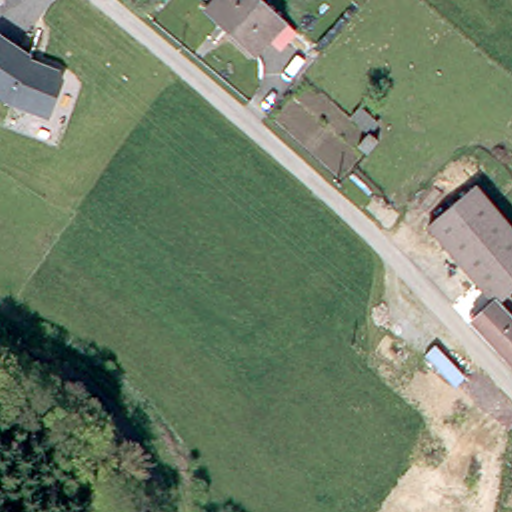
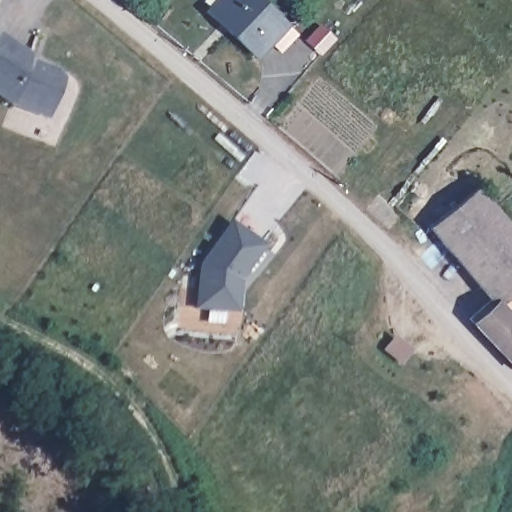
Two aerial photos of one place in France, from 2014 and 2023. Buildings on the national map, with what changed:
unchanged [(282,21),(253,52),(229,30),(230,23),(210,5),(215,0),(260,0),(282,21)]
unchanged [(0,95),(0,35),(31,56),(30,60),(60,72),(48,117),(11,102),(0,95)]
demolished [(375,145),(366,154),(353,142),(363,132),(375,145)]
unchanged [(494,295),(473,272),(431,227),(471,192),(512,236),(512,295),(507,290),(497,298),(494,295)]
new [(261,246),(242,276),(241,313),(197,311),(200,265),(231,224),(261,246)]
unchanged [(512,312),(512,353),(474,315),(494,295),(497,298),(512,312)]

